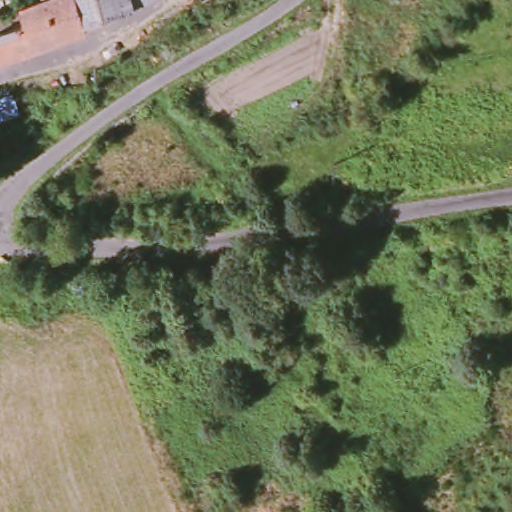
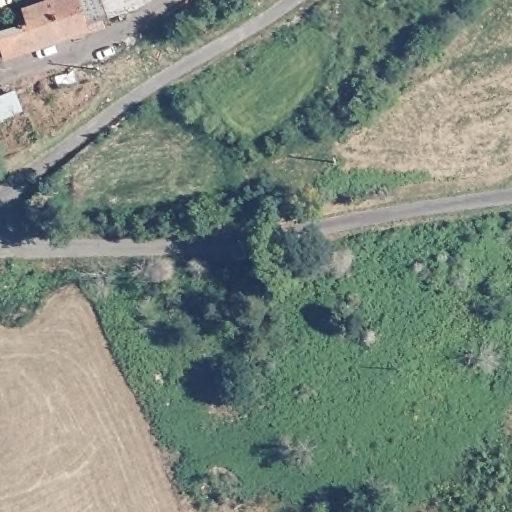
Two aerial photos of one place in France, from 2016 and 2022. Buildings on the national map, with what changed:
unchanged [(17,21),(13,8),(36,0),(143,0),(129,9),(74,25),(82,36),(0,57),(0,28),(17,21)]

